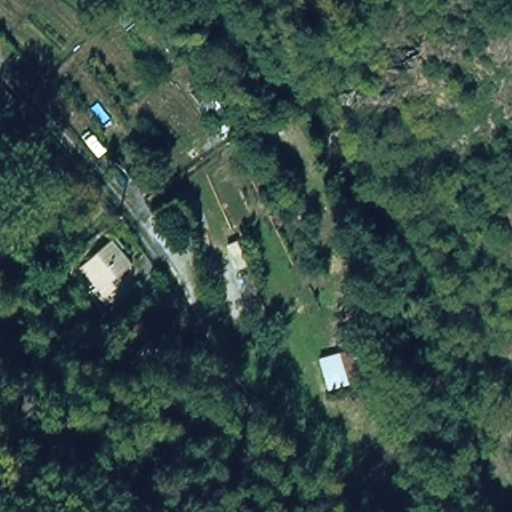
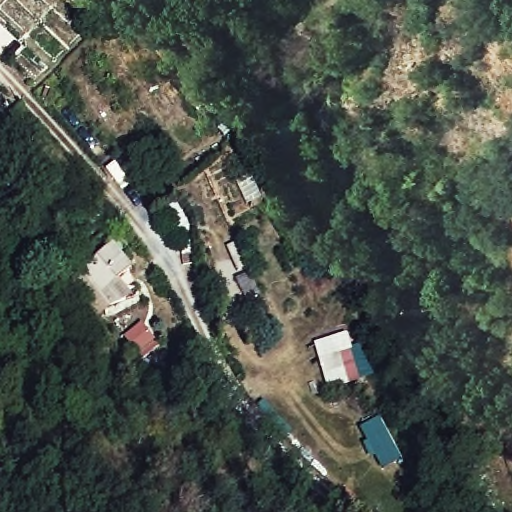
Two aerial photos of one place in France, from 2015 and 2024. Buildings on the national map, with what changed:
unchanged [(71,269),(105,240),(125,267),(92,294),(71,269)]

